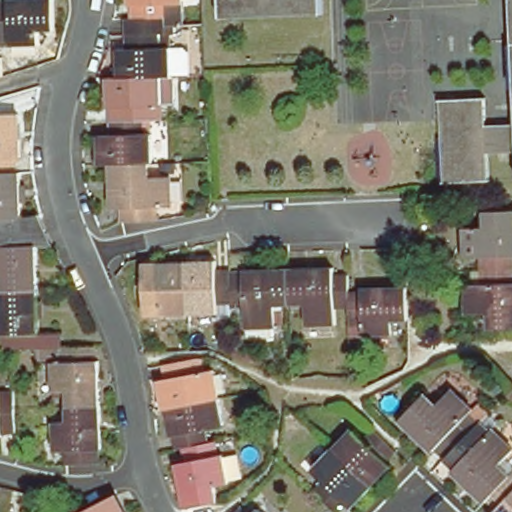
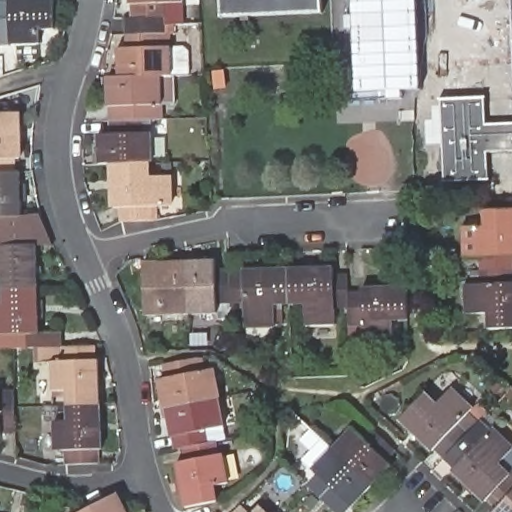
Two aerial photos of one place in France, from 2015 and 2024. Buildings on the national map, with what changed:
unchanged [(10,0),(53,0),(54,35),(39,35),(39,50),(11,50),(11,40),(0,40),(0,8),(10,7),(10,0)]
unchanged [(121,206),(112,206),(112,164),(98,164),(97,135),(111,134),(111,105),(108,105),(107,76),(118,76),(117,46),(127,46),(127,16),(132,16),(132,3),(130,3),(129,0),(181,0),(182,2),(162,2),(162,34),(157,34),(158,46),(172,46),(172,75),(161,75),(161,104),(142,105),(142,134),(152,134),(152,162),(147,163),(147,177),(169,177),(170,205),(152,205),(152,221),(122,222),(121,222),(121,206)]
unchanged [(321,11),(220,16),(219,0),(321,0),(321,11)]
new [(352,0),(416,0),(420,90),(357,92),(352,0)]
unchanged [(511,0),(512,0),(512,12),(511,0)]
unchanged [(487,155),(487,184),(443,185),(440,102),(485,100),(486,127),(512,127),(512,154),(487,155)]
unchanged [(51,239),(52,244),(37,244),(40,330),(61,330),(62,347),(93,346),(94,360),(99,360),(102,448),(98,449),(99,465),(67,466),(67,450),(55,451),(53,421),(69,420),(67,389),(52,390),(51,360),(41,360),(41,347),(0,348),(0,305),(4,305),(4,275),(0,275),(0,112),(18,111),(20,157),(16,157),(17,171),(21,171),(22,216),(42,215),(46,224),(51,239)]
unchanged [(489,333),(488,317),(467,318),(465,288),(483,287),(482,260),(464,261),(463,232),(486,231),(485,215),(512,214),(512,332),(489,333)]
unchanged [(348,326),(348,309),(335,310),(335,327),(306,328),(305,307),(275,307),(275,329),(245,330),(245,310),(231,310),(231,306),(216,306),(216,318),(159,320),(159,305),(144,305),(144,273),(159,273),(159,267),(215,266),(216,276),(230,275),(231,280),(245,280),(245,275),(335,271),(335,278),(347,277),(348,298),(362,297),(362,291),(407,291),(407,323),(392,324),(392,337),(362,338),(348,338),(348,326)]
unchanged [(194,357),(197,373),(211,370),(223,426),(209,429),(212,441),(214,441),(217,455),(222,454),(227,480),(212,483),(216,500),(184,507),(175,462),(187,460),(184,447),(181,448),(179,435),(171,436),(159,380),(167,379),(163,363),(194,357)]
unchanged [(366,376),(363,381),(362,381),(356,380),(353,378),(350,375),(352,370),(366,376)]
unchanged [(1,398),(14,398),(16,431),(2,431),(2,436),(0,436),(0,388),(1,387),(1,398)]
unchanged [(425,396),(436,406),(451,391),(472,412),(456,429),(477,448),(492,432),(512,452),(512,454),(498,468),(512,481),(512,512),(495,512),(497,510),(487,500),(484,503),(452,472),(455,470),(433,450),(432,453),(400,423),(425,396)]
unchanged [(385,465),(391,470),(351,512),(345,506),(339,512),(330,512),(311,493),(322,483),(311,473),(352,431),(362,441),(371,431),(393,455),(385,465)]
unchanged [(117,510),(123,506),(126,512),(84,512),(111,498),(117,510)]
unchanged [(246,512),(232,512),(239,505),(246,512)]
unchanged [(264,512),(253,512),(258,506),(264,512)]

